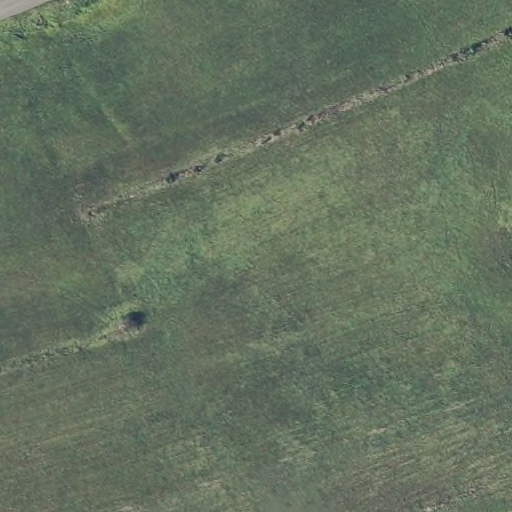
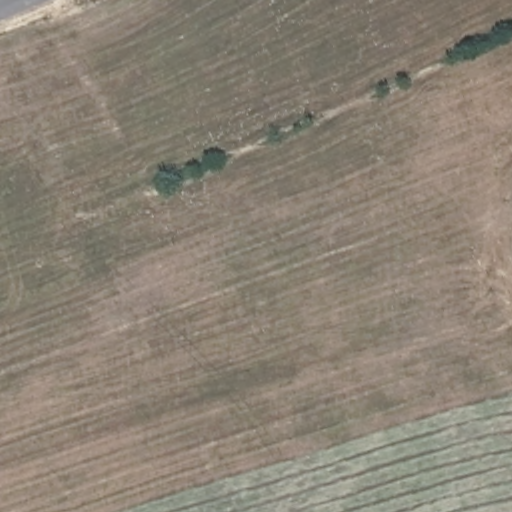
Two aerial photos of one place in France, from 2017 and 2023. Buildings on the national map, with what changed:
[]

